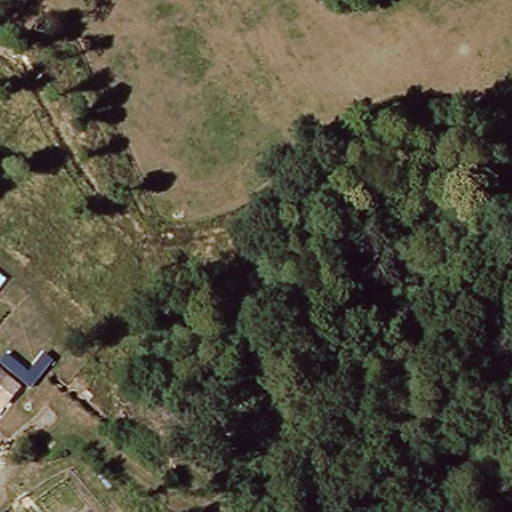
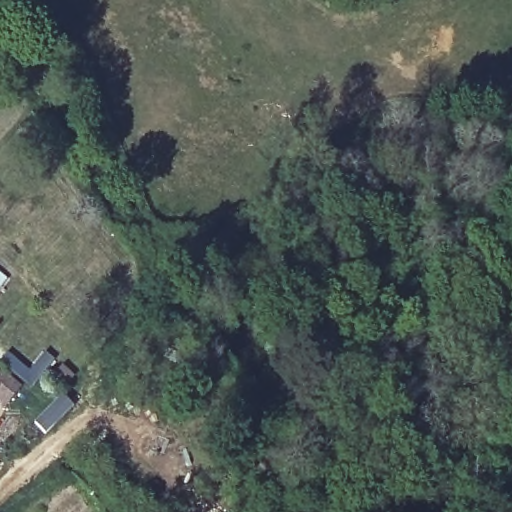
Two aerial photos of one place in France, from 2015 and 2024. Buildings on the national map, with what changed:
unchanged [(0,368),(8,375),(0,385),(0,368)]

